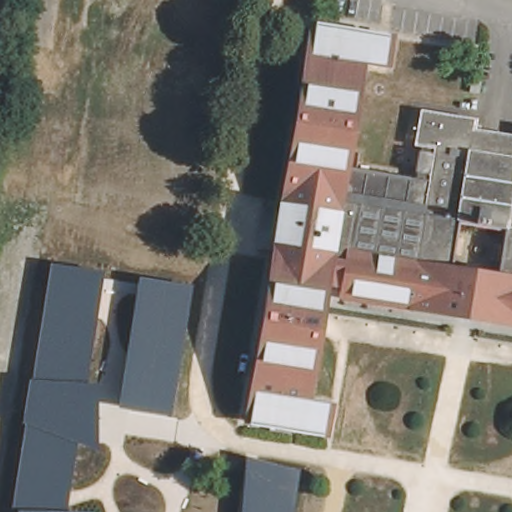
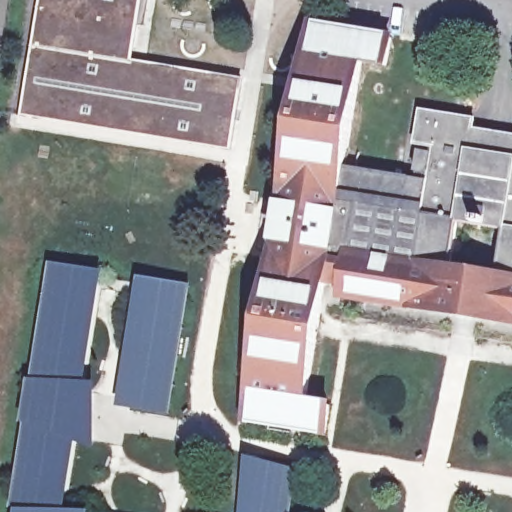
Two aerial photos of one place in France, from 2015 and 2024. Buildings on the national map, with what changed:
new [(233,150),(23,115),(42,0),(144,0),(133,60),(243,80),(233,150)]
demolished [(146,36),(96,30),(101,0),(153,0),(146,36)]
demolished [(216,35),(173,30),(178,0),(223,0),(216,35)]
unchanged [(387,69),(359,63),(341,170),(414,184),(421,146),(413,145),(419,114),(472,124),(512,131),(512,322),(472,315),(339,293),(341,284),(323,281),(305,387),(303,404),(328,408),(323,435),(243,422),(284,185),(310,26),(391,40),(387,69)]
unchanged [(471,74),(481,76),(477,97),(467,95),(471,74)]
unchanged [(84,383),(96,385),(98,450),(76,442),(65,511),(91,512),(17,512),(17,510),(11,510),(25,425),(22,423),(28,380),(31,380),(51,264),(103,272),(84,383)]
unchanged [(192,286),(171,415),(118,408),(138,278),(192,286)]
unchanged [(299,469),(294,512),(242,512),(248,457),(299,469)]

